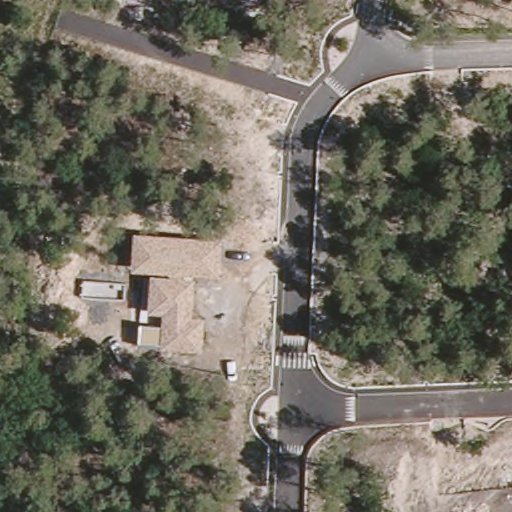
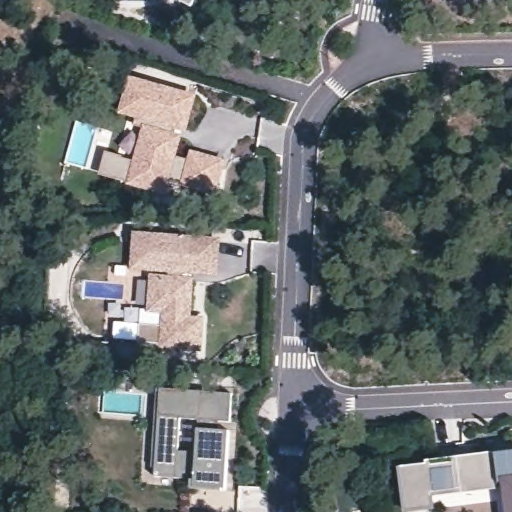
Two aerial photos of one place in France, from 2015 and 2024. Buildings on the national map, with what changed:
new [(179,0),(197,0),(193,6),(179,0)]
new [(198,96),(188,132),(175,129),(173,133),(182,136),(177,157),(188,160),(191,150),(225,160),(218,195),(180,187),(181,182),(171,180),(165,196),(127,185),(128,182),(100,175),(106,152),(134,160),(142,127),(134,126),(136,119),(118,113),(130,77),(198,96)]
unchanged [(135,233),(220,240),(218,277),(196,276),(193,318),(205,319),(202,352),(138,346),(140,325),(160,327),(162,313),(147,312),(150,273),(131,272),(135,233)]
new [(232,394),(232,422),(220,422),(220,431),(228,432),(225,491),(193,489),(193,478),(155,477),(155,466),(151,467),(155,389),(232,394)]
new [(426,461),(512,450),(512,512),(507,512),(504,490),(433,497),(435,508),(405,512),(400,467),(427,464),(426,461)]

